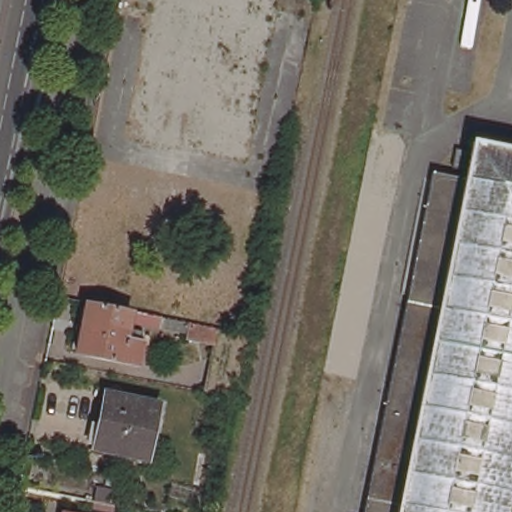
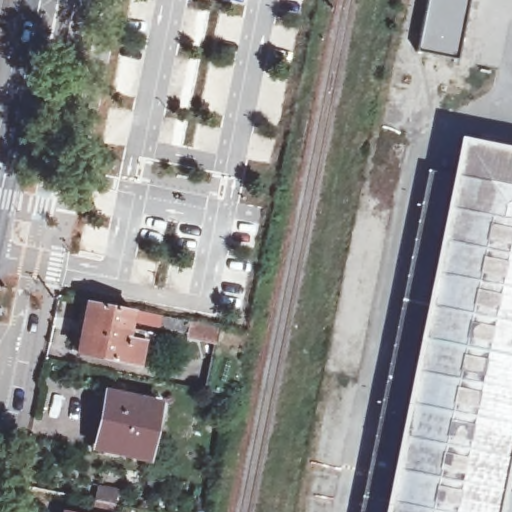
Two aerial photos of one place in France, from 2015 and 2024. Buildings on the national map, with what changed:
new [(419,50),(428,0),(469,0),(458,58),(419,50)]
unchanged [(373,482),(439,175),(471,180),(478,143),(512,150),(512,512),(366,512),(373,482)]
unchanged [(123,309),(120,325),(134,328),(126,360),(71,348),(82,300),(123,309)]
unchanged [(237,395),(209,390),(222,332),(249,337),(237,395)]
unchanged [(162,404),(150,460),(99,448),(111,393),(162,404)]
unchanged [(107,509),(106,512),(85,512),(87,505),(107,509)]

